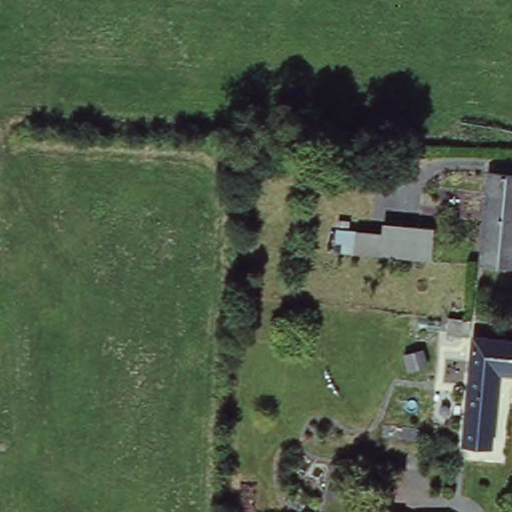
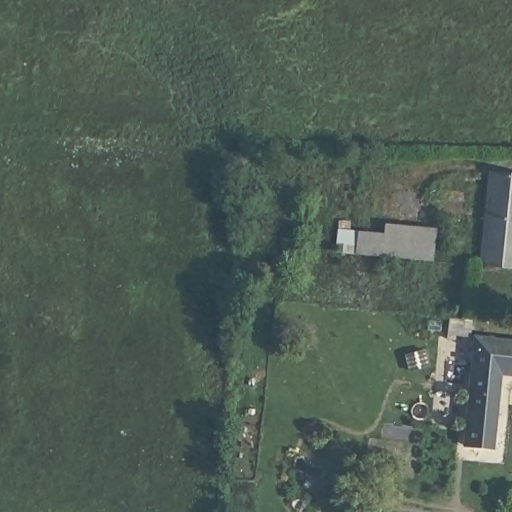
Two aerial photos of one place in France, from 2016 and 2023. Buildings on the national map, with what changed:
unchanged [(473,266),(482,169),(512,171),(512,269),(473,266)]
unchanged [(436,262),(332,255),(333,229),(380,232),(380,220),(438,227),(436,262)]
unchanged [(452,324),(450,336),(437,333),(437,323),(452,324)]
unchanged [(484,372),(475,440),(447,436),(451,411),(462,346),(463,339),(501,344),(512,346),(512,376),(484,372)]

